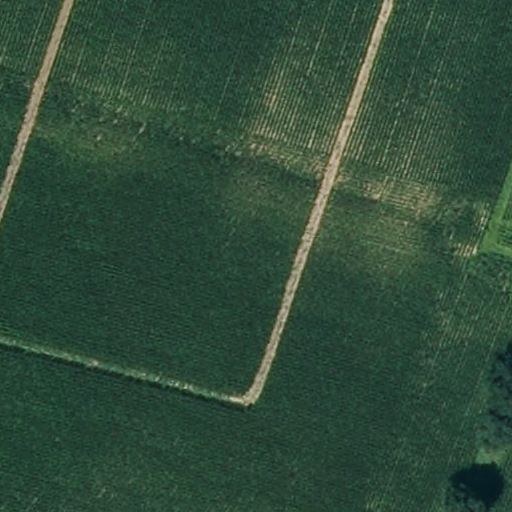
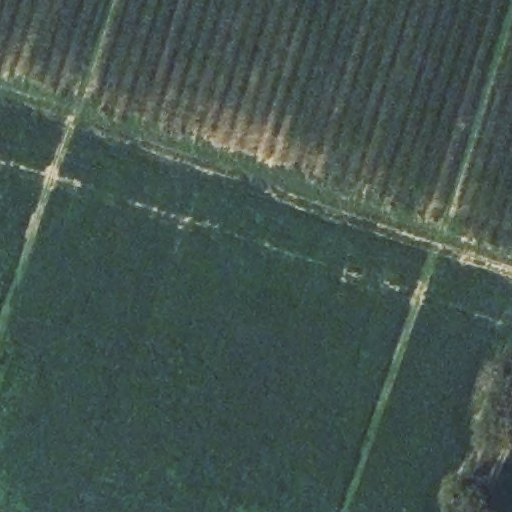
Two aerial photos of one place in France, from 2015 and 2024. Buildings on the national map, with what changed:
[]

